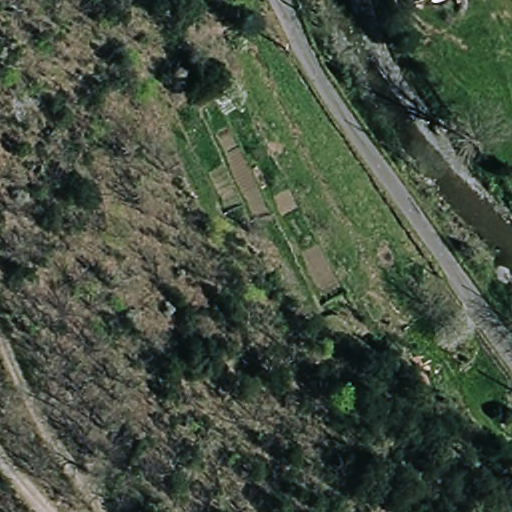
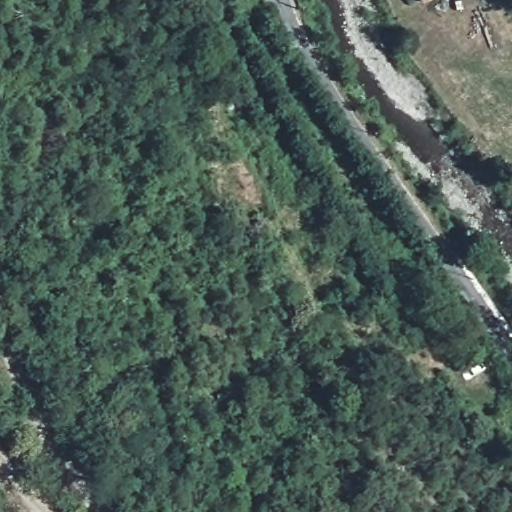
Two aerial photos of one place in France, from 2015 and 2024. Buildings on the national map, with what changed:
unchanged [(421,4),(419,0),(432,0),(421,4)]

